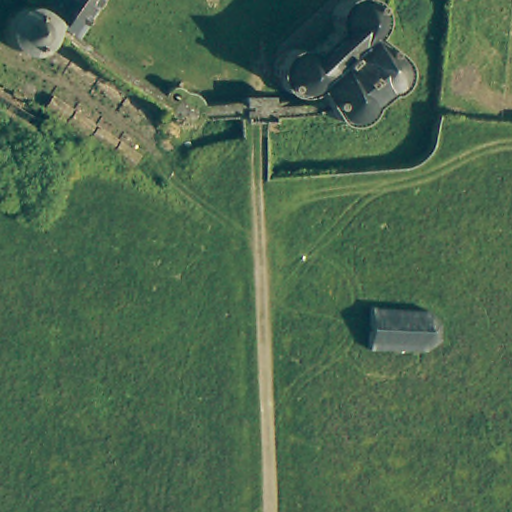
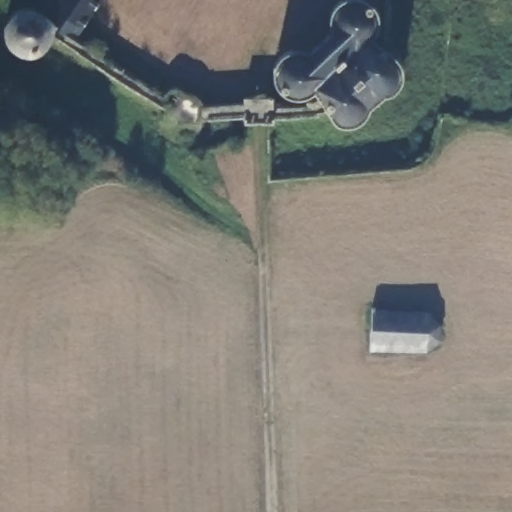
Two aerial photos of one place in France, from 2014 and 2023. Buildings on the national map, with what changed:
unchanged [(39,0),(105,0),(83,35),(45,7),(41,5),(37,2),(39,0)]
unchanged [(282,55),(286,49),(291,45),(298,42),(304,42),(310,45),(316,49),(336,29),(333,24),(331,17),(331,10),(333,2),(334,0),(378,0),(381,6),(381,15),(379,25),(390,45),(396,45),(402,48),(406,52),(409,57),(409,64),(408,70),(400,80),(395,83),(374,83),(370,105),(365,113),(360,116),(354,117),(348,116),(343,113),(339,109),(323,80),(305,85),(298,85),(292,82),(286,79),(283,73),(280,66),(280,60),(282,55)]
unchanged [(9,18),(12,12),(17,6),(23,4),(30,2),(37,2),(41,5),(45,7),(49,13),(52,19),(53,24),(53,30),(51,35),(48,41),(43,46),(36,49),(29,50),(23,47),(17,44),(12,39),(9,32),(8,25),(9,18)]
unchanged [(171,91),(178,86),(186,85),(193,85),(201,89),(206,94),(210,103),(211,111),(210,119),(208,125),(201,132),(195,135),(189,136),(182,135),(175,134),(171,130),(166,125),(164,117),(163,110),(165,100),(171,91)]
unchanged [(440,341),(427,351),(370,349),(369,310),(431,310),(442,315),(440,341)]

